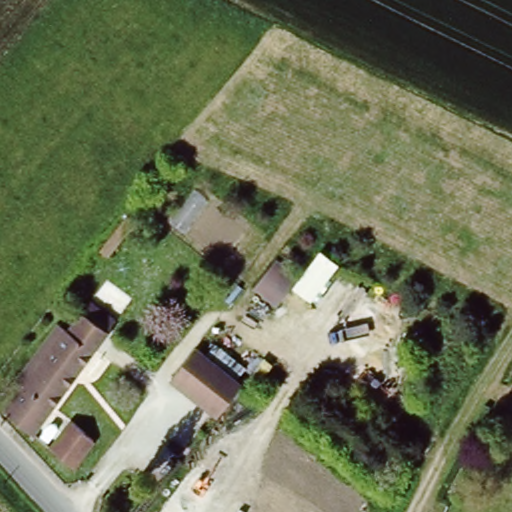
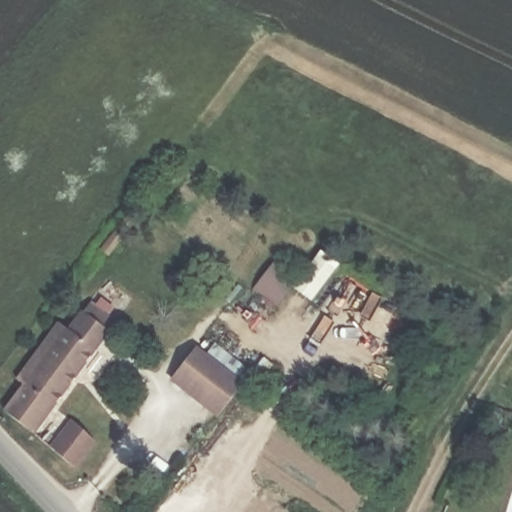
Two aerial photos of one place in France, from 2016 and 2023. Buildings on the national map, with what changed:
unchanged [(301,275),(319,254),(336,268),(310,301),(291,288),(275,308),(252,289),(279,257),(301,275)]
unchanged [(24,384),(15,376),(57,319),(67,325),(80,307),(109,329),(35,430),(8,409),(24,384)]
unchanged [(222,407),(173,374),(196,340),(244,378),(222,407)]
unchanged [(98,439),(66,482),(50,469),(66,448),(60,444),(75,423),(98,439)]

